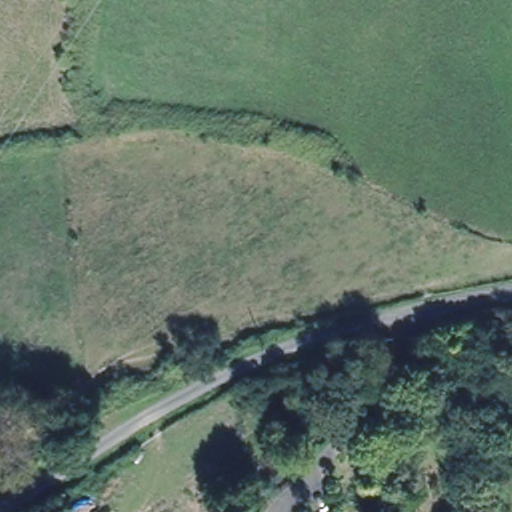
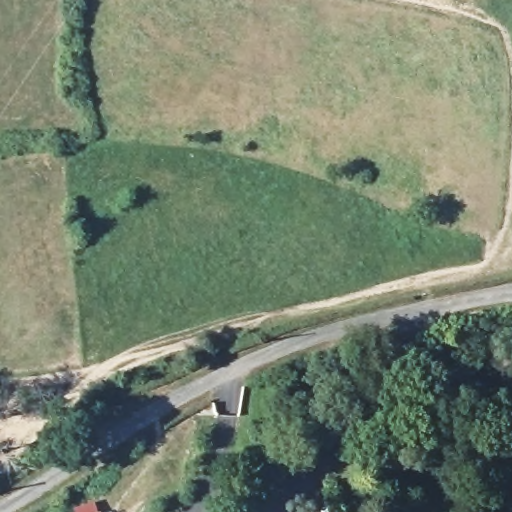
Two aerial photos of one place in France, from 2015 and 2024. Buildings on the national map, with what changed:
unchanged [(106,512),(99,512),(105,510),(106,512)]

